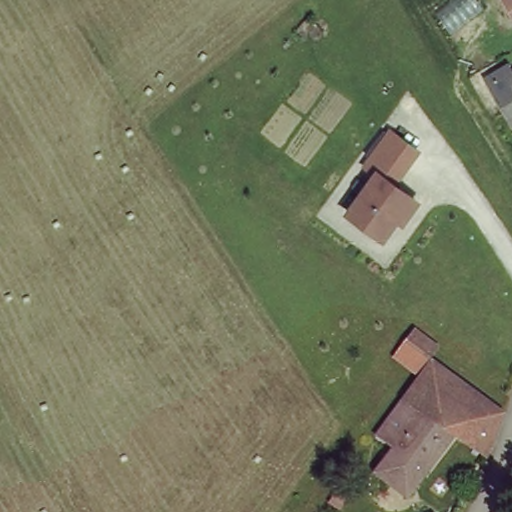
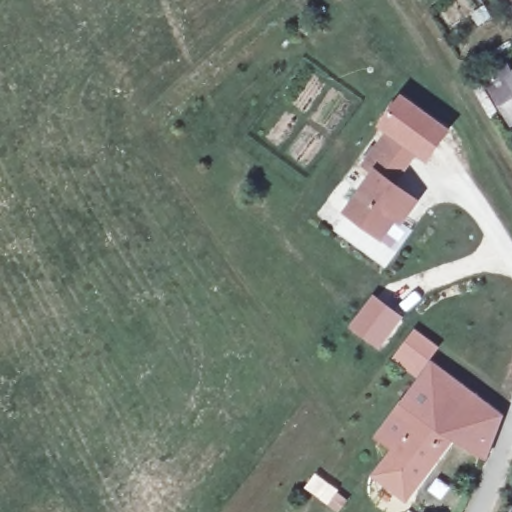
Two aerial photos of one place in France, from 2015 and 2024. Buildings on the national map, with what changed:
unchanged [(497,98),(482,75),(499,66),(504,75),(512,71),(512,109),(505,113),(497,98)]
new [(387,133),(379,127),(403,94),(454,131),(430,164),(413,151),(387,133)]
unchanged [(365,166),(387,133),(413,151),(390,184),(415,201),(402,221),(397,217),(384,237),(348,213),(375,175),(365,166)]
new [(373,293),(405,317),(380,350),(350,326),(373,293)]
new [(412,343),(422,331),(445,349),(436,361),(435,368),(423,382),(397,362),(412,343)]
unchanged [(393,451),(378,437),(435,368),(480,403),(458,429),(400,501),(385,488),(372,477),(393,451)]
unchanged [(480,403),(502,420),(496,433),(487,452),(458,429),(480,403)]

